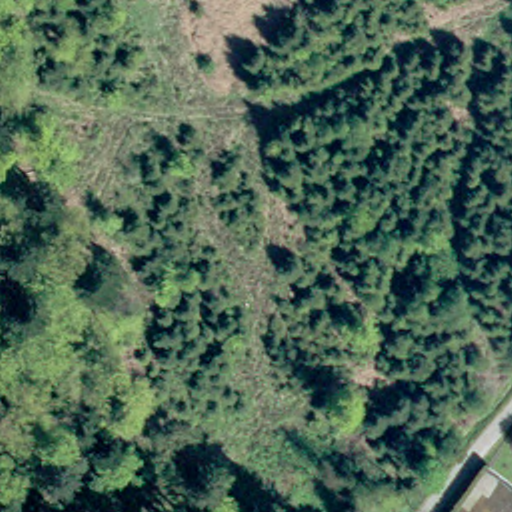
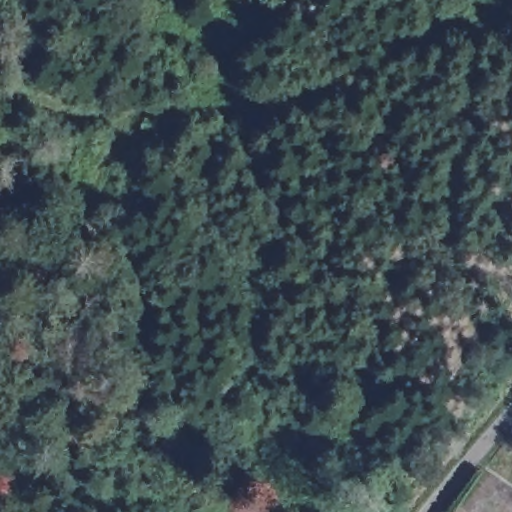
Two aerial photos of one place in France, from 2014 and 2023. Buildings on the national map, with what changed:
[]

